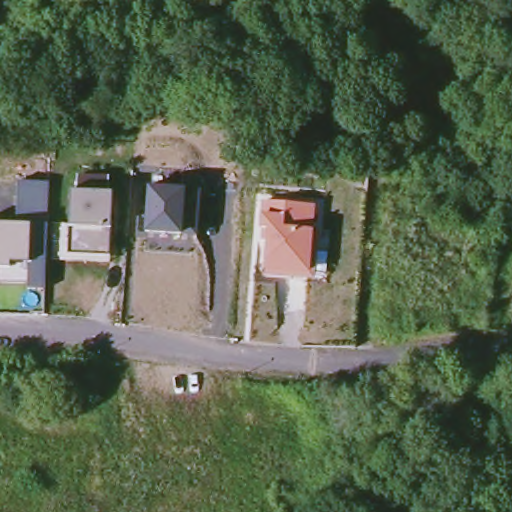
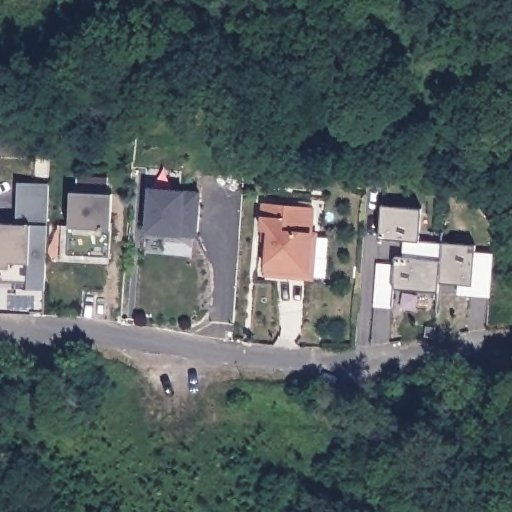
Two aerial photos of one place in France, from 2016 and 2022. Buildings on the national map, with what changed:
unchanged [(49,227),(45,292),(30,291),(30,284),(0,283),(0,269),(0,225),(21,226),(20,183),(51,185),(49,227)]
unchanged [(185,191),(201,191),(197,236),(181,236),(145,233),(148,189),(185,191)]
unchanged [(69,255),(70,228),(72,192),(113,195),(111,232),(111,257),(69,255)]
unchanged [(316,229),(320,231),(315,281),(266,276),(267,271),(268,243),(260,241),(262,203),(317,207),(316,229)]
new [(490,298),(455,296),(457,283),(439,281),(438,291),(395,287),(392,309),(372,308),(376,264),(395,264),(395,257),(400,257),(402,240),(379,239),(382,205),(421,208),(419,240),(475,245),(474,251),(493,252),(490,298)]

